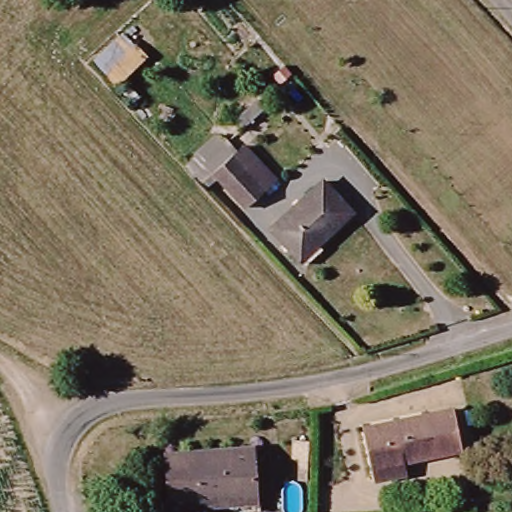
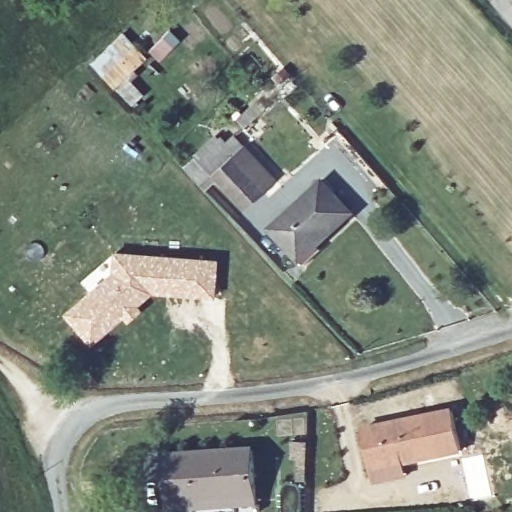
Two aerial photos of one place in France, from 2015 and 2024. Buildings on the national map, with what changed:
new [(146,94),(134,107),(92,65),(121,32),(149,56),(129,78),(146,94)]
unchanged [(227,142),(259,180),(239,197),(207,159),(227,142)]
unchanged [(269,227),(321,182),(349,214),(297,259),(269,227)]
new [(109,268),(105,264),(112,255),(114,251),(219,258),(215,298),(153,294),(140,305),(144,309),(128,324),(123,318),(91,346),(62,313),(109,268)]
unchanged [(368,468),(360,429),(451,412),(458,449),(421,457),(368,468)]
unchanged [(174,512),(166,512),(163,456),(249,451),(252,507),(174,512)]

